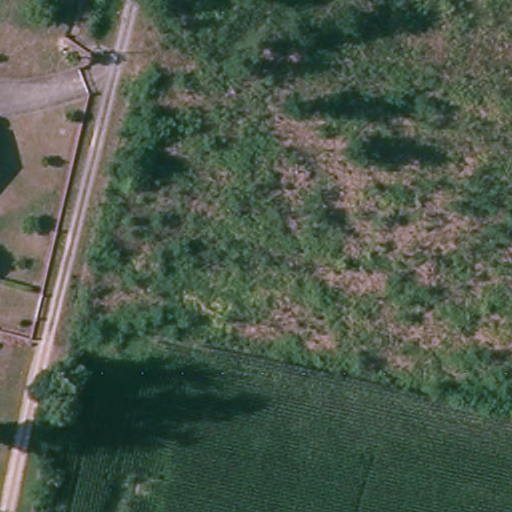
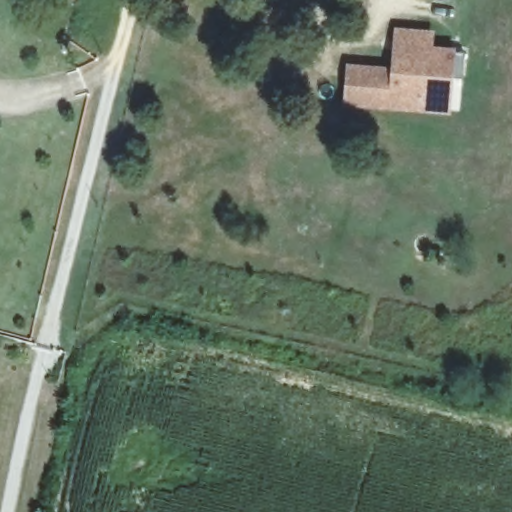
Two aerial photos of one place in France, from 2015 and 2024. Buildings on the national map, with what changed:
new [(392,66),(395,48),(408,51),(411,29),(430,32),(430,47),(465,50),(463,74),(452,74),(448,115),(342,105),(347,60),(392,66)]

